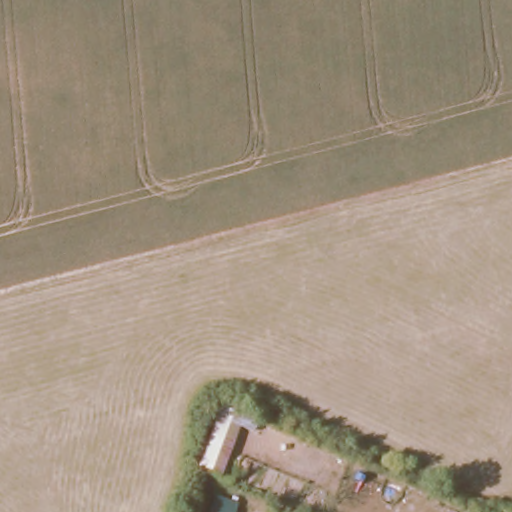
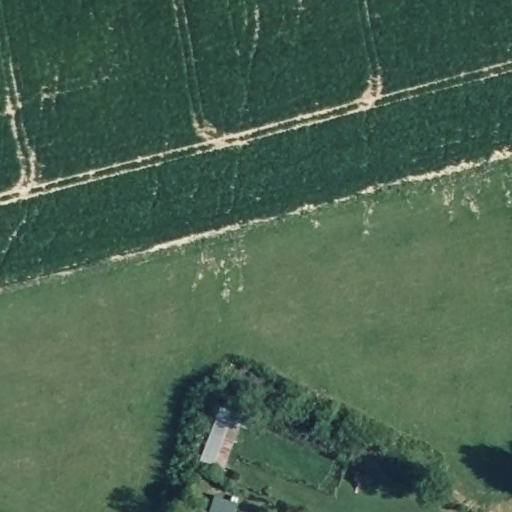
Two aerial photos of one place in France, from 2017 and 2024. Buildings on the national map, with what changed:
unchanged [(199,462),(224,402),(235,406),(230,418),(242,423),(222,472),(199,462)]
unchanged [(238,500),(233,512),(208,512),(217,491),(238,500)]

